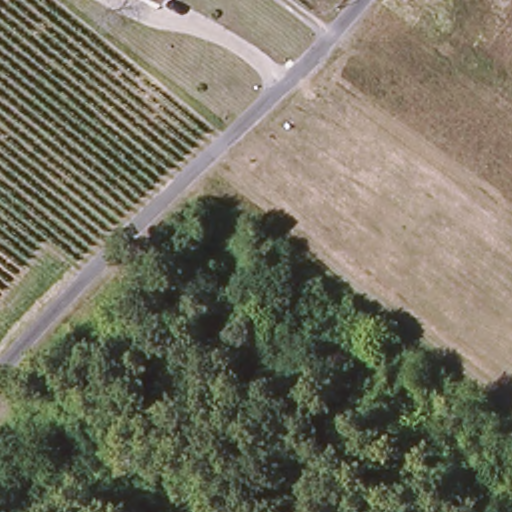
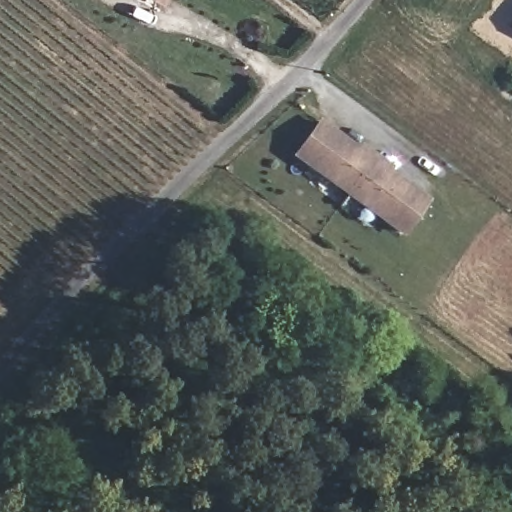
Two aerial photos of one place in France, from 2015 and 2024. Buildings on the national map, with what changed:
demolished [(166,0),(163,6),(151,0),(166,0)]
new [(293,156),(321,119),(359,147),(362,143),(378,155),(347,196),(293,156)]
new [(378,155),(394,166),(391,171),(430,199),(404,237),(347,196),(378,155)]

